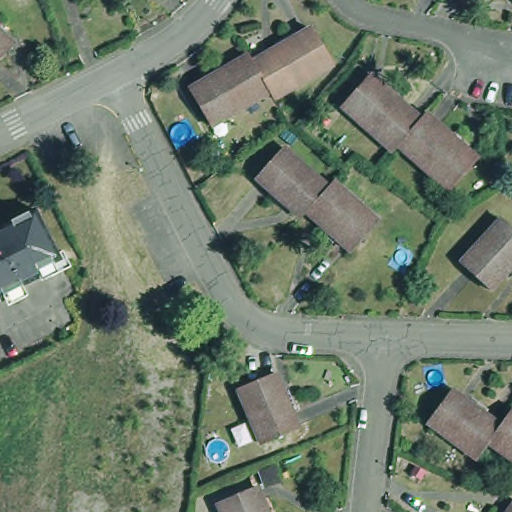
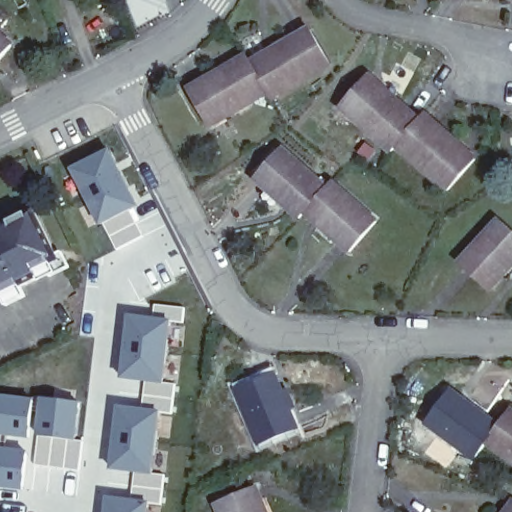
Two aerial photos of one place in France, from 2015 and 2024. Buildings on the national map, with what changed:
unchanged [(8,18),(4,24),(19,37),(0,59),(0,11),(8,18)]
unchanged [(284,49),(297,41),(300,46),(316,36),(337,73),(279,107),(275,100),(266,86),(257,70),(287,53),(284,49)]
unchanged [(266,86),(275,100),(215,135),(195,99),(210,89),(207,85),(220,77),(222,82),(253,64),(257,70),(266,86)]
unchanged [(398,152),(347,109),(375,77),(390,91),(395,86),(405,95),(401,100),(425,121),(403,147),(398,152)]
unchanged [(460,132),(470,141),(466,147),(482,161),(455,192),(403,147),(425,121),(430,116),(456,137),(460,132)]
new [(109,148),(138,207),(99,227),(70,167),(109,148)]
unchanged [(266,197),(270,192),(255,181),(282,151),(327,190),(305,213),(301,218),(280,201),(276,206),(266,197)]
unchanged [(321,235),(326,231),(305,213),(327,190),(333,184),(377,222),(351,252),(336,240),(332,245),(321,235)]
unchanged [(63,262),(40,273),(42,280),(0,301),(0,234),(0,233),(0,231),(38,212),(63,262)]
unchanged [(505,272),(492,287),(461,260),(500,215),(512,225),(512,276),(510,277),(505,272)]
new [(131,495),(135,472),(106,469),(116,405),(141,407),(145,382),(120,379),(126,313),(171,319),(163,383),(175,385),(170,418),(160,417),(151,475),(164,476),(160,506),(148,503),(147,512),(104,512),(105,496),(136,500),(136,496),(131,495)]
unchanged [(257,445),(233,389),(271,373),(281,396),(288,394),(294,407),(287,410),(296,430),(257,445)]
unchanged [(424,420),(448,387),(469,403),(473,397),(484,406),(480,412),(495,422),(483,438),(473,454),(471,457),(424,420)]
new [(33,397),(29,440),(0,435),(0,393),(33,397)]
new [(39,397),(80,402),(75,442),(37,437),(39,397)]
unchanged [(495,422),(507,407),(512,410),(512,460),(483,438),(495,422)]
new [(37,437),(75,442),(80,442),(76,468),(35,463),(37,437)]
new [(27,449),(23,491),(0,488),(0,445),(27,449)]
unchanged [(261,506),(267,504),(271,512),(217,512),(213,504),(253,487),(261,506)]
unchanged [(512,499),(512,512),(501,512),(511,498),(512,499)]
unchanged [(500,512),(492,512),(495,508),(500,512)]

